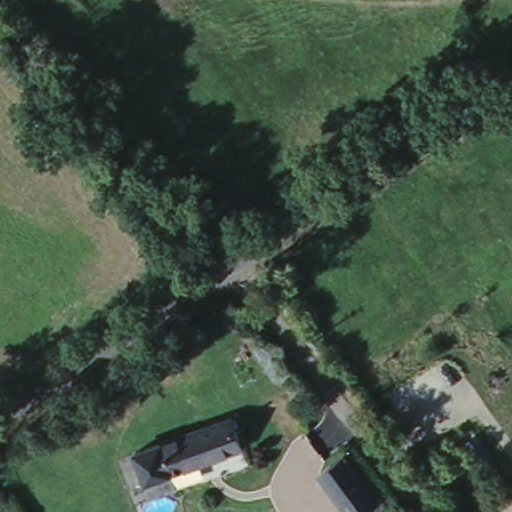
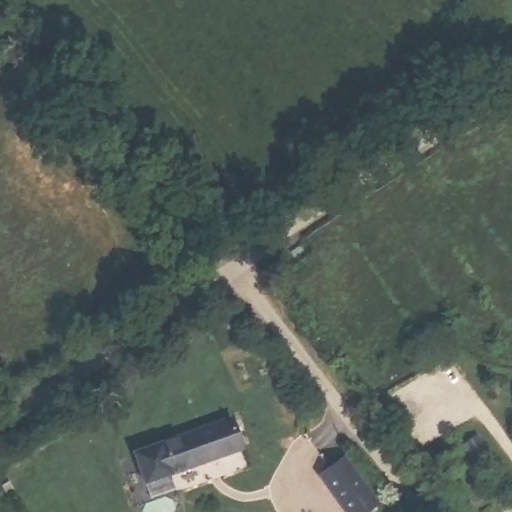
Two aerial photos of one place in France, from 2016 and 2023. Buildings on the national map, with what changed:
unchanged [(147,477),(137,447),(233,413),(244,443),(200,458),(174,468),(147,477)]
unchanged [(470,437),(483,428),(500,450),(488,459),(475,443),(470,437)]
unchanged [(348,453),(380,502),(365,512),(350,512),(323,469),(348,453)]

